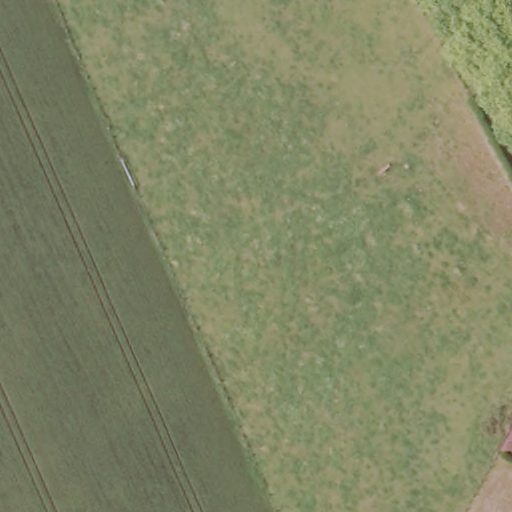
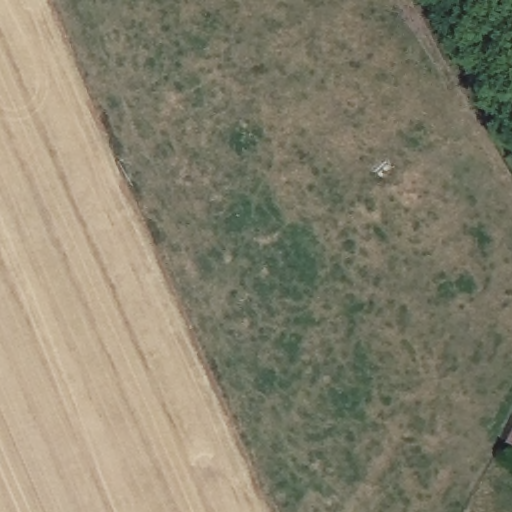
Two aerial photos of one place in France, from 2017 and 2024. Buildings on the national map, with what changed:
unchanged [(512,434),(512,459),(502,453),(512,434)]

